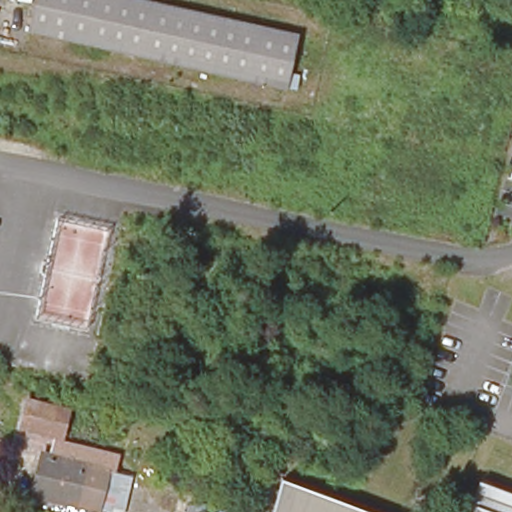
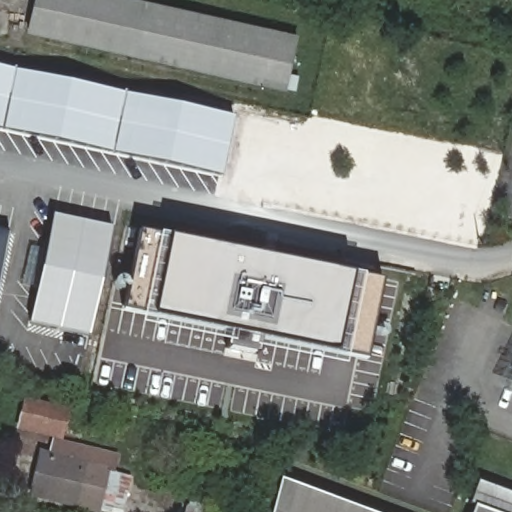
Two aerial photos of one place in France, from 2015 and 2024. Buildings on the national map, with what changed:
unchanged [(39,0),(150,0),(299,30),(289,82),(33,29),(39,0)]
new [(222,176),(0,129),(0,67),(234,116),(222,176)]
new [(54,214),(113,226),(102,281),(90,335),(31,322),(43,267),(54,214)]
new [(139,230),(383,282),(366,362),(260,340),(256,356),(224,350),(228,333),(123,310),(139,230)]
unchanged [(0,262),(0,231),(6,232),(0,262)]
unchanged [(510,381),(512,376),(512,382),(510,381)]
unchanged [(25,403),(64,413),(56,436),(18,426),(25,403)]
unchanged [(108,512),(96,508),(96,510),(32,494),(44,455),(106,472),(105,475),(129,481),(120,512),(108,512)]
unchanged [(360,512),(275,512),(284,482),(360,512)]
unchanged [(501,512),(470,512),(474,502),(501,512)]

